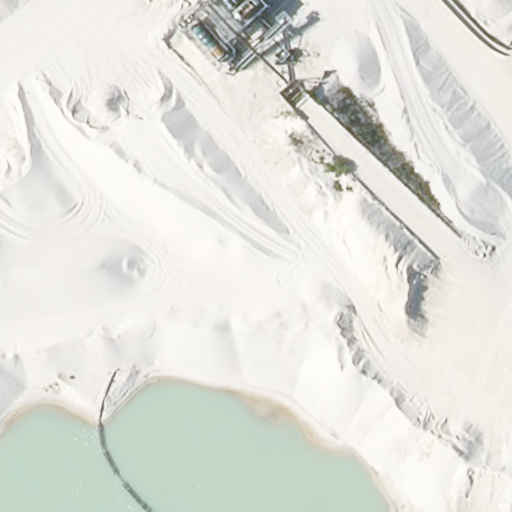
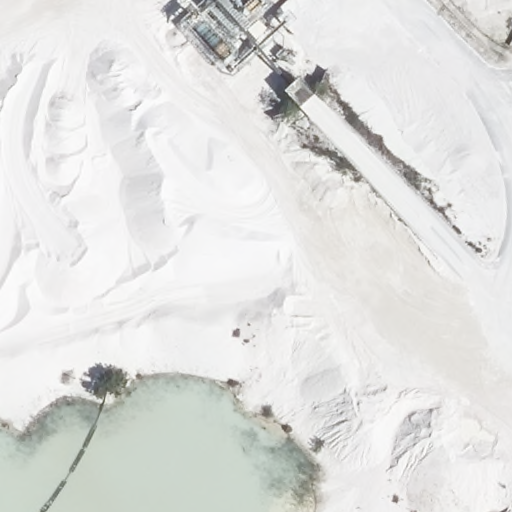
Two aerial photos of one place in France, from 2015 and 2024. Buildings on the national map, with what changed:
unchanged [(273,2),(234,40),(198,1),(200,0),(271,0),(273,2)]

